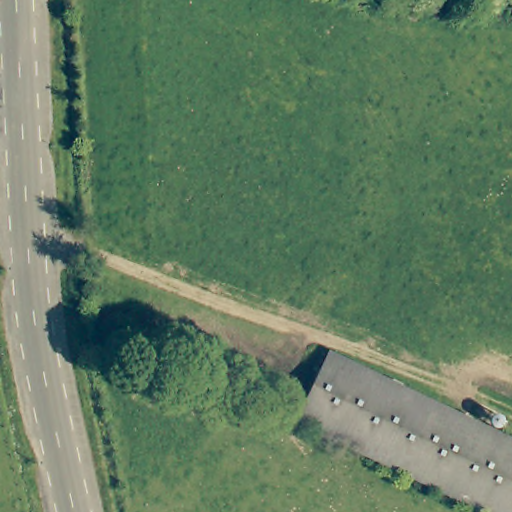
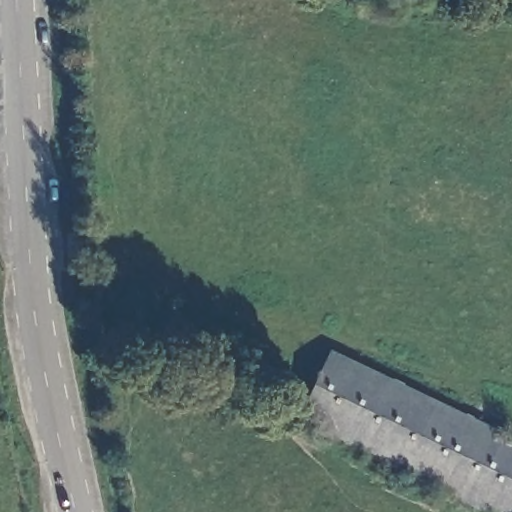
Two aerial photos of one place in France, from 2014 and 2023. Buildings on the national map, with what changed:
unchanged [(512,440),(512,512),(476,512),(440,494),(301,428),(335,356),(512,440)]

